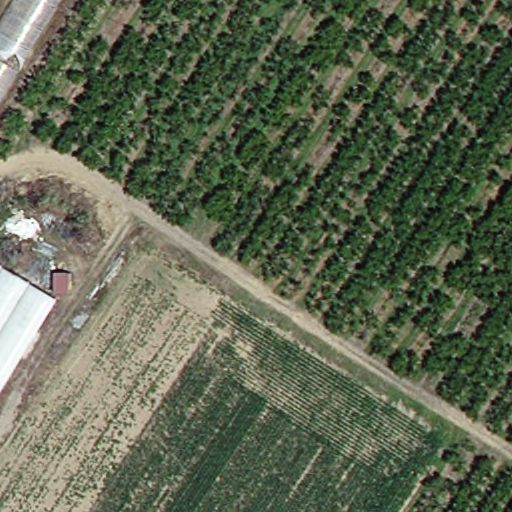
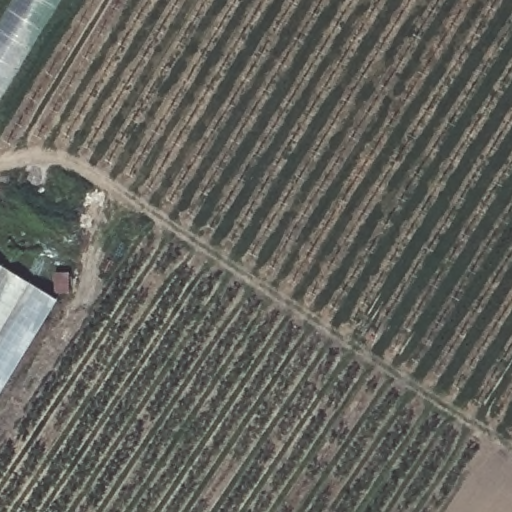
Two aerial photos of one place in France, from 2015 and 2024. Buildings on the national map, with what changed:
unchanged [(49,0),(0,80),(0,0),(49,0)]
unchanged [(50,297),(0,378),(0,266),(50,297)]

